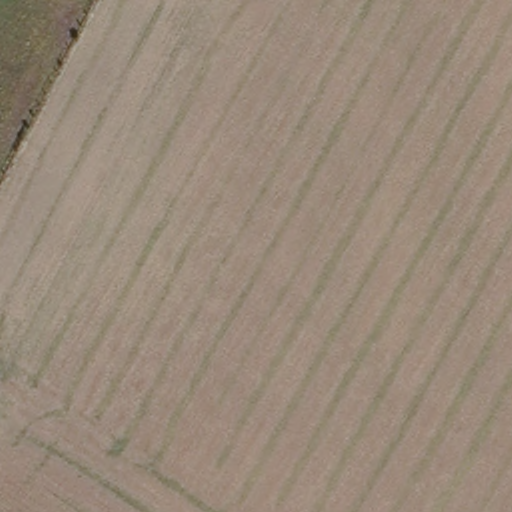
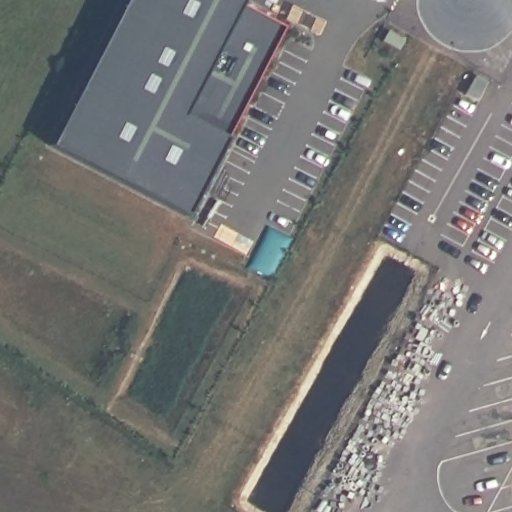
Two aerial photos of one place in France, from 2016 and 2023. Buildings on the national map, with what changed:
new [(178,212),(43,142),(119,0),(241,0),(281,20),(178,212)]

